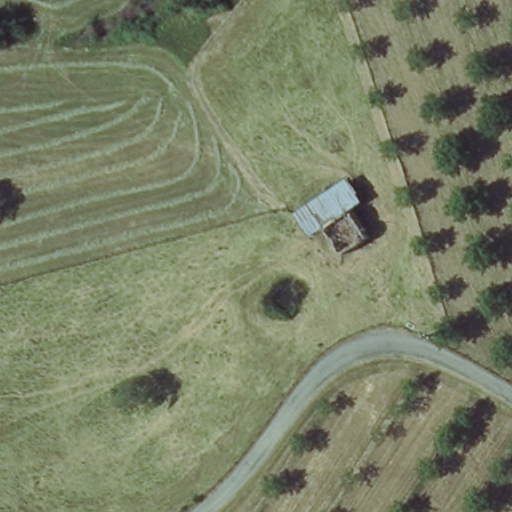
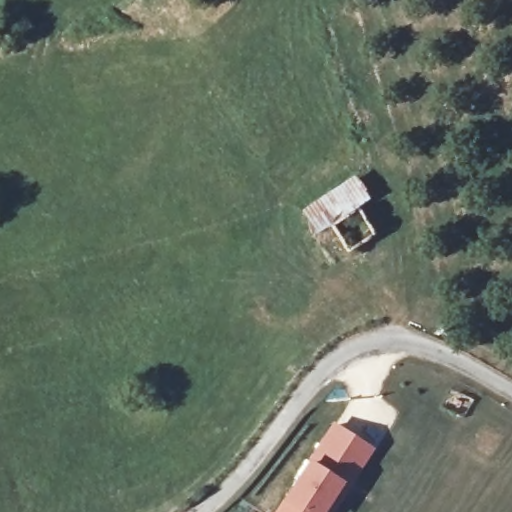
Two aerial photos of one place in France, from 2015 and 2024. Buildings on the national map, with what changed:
unchanged [(351,181),(366,204),(351,214),(346,206),(319,224),(324,231),(311,239),(296,216),(351,181)]
new [(309,461),(309,460),(334,422),(374,448),(334,512),(299,512),(283,501),(309,461)]

